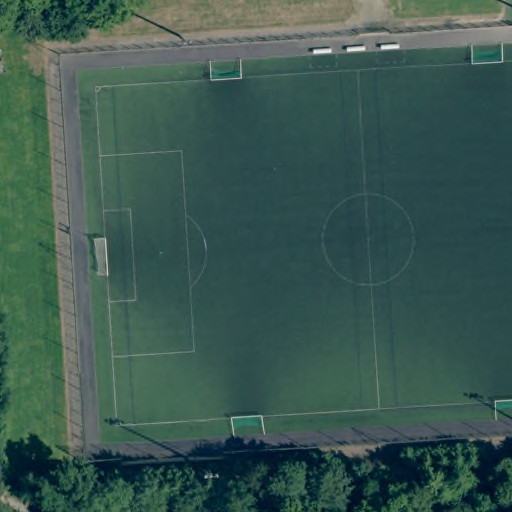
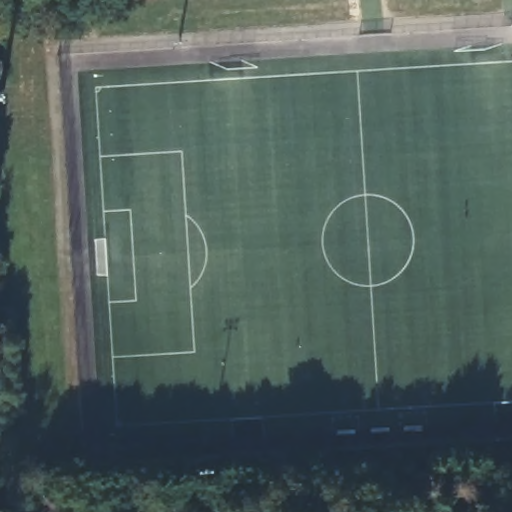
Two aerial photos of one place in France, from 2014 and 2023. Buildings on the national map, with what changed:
[]

